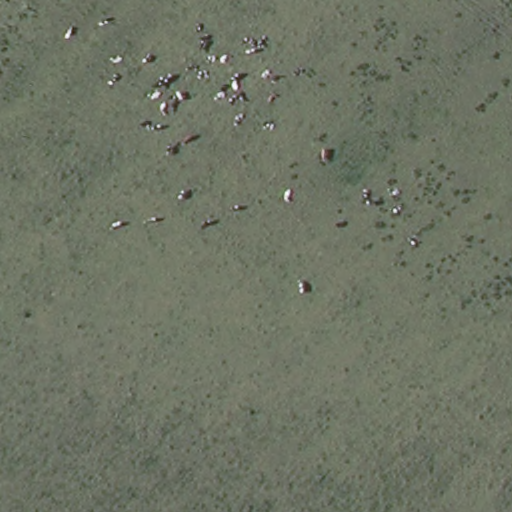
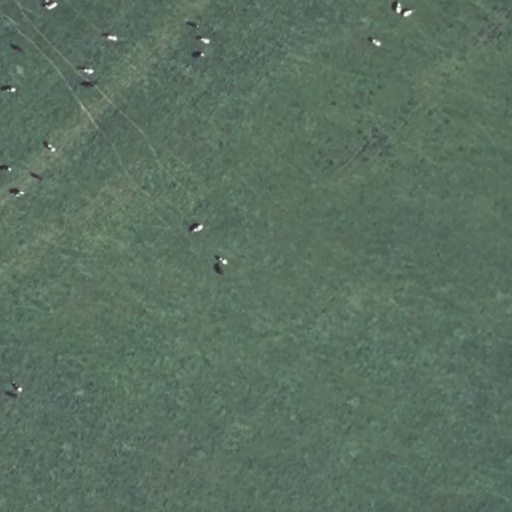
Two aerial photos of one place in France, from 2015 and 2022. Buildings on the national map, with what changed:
[]

